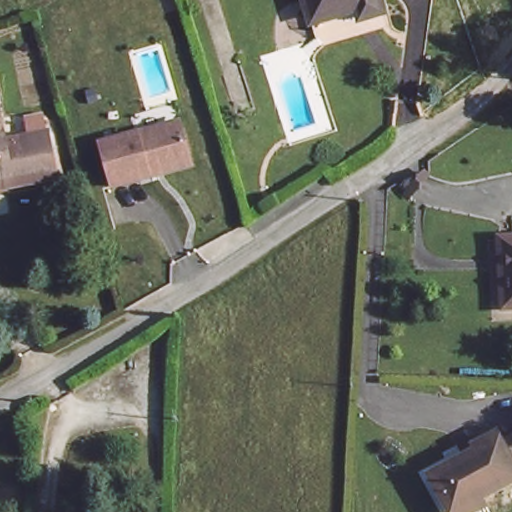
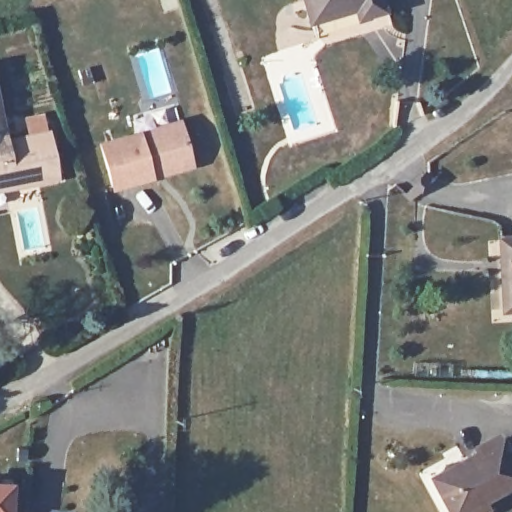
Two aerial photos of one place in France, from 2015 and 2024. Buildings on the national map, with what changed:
unchanged [(362,16),(357,5),(311,21),(304,0),(381,0),(384,7),(362,16)]
unchanged [(7,137),(48,129),(58,170),(8,180),(0,182),(0,108),(2,115),(7,137)]
unchanged [(150,177),(112,187),(101,144),(181,123),(190,157),(192,166),(150,177)]
unchanged [(502,304),(510,229),(512,229),(512,305),(502,304)]
unchanged [(458,512),(451,512),(431,478),(501,440),(512,458),(512,481),(458,512)]
new [(12,512),(0,512),(0,479),(15,480),(12,512)]

